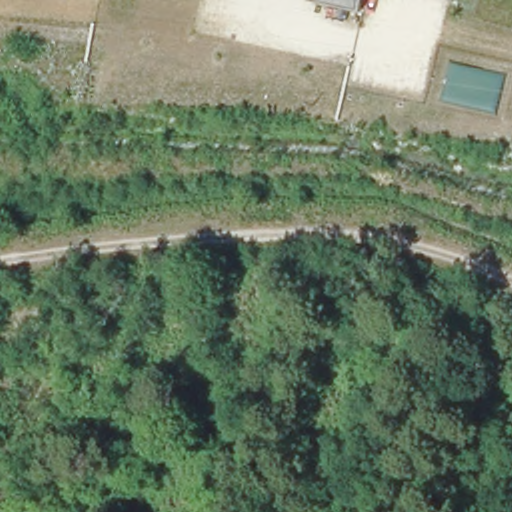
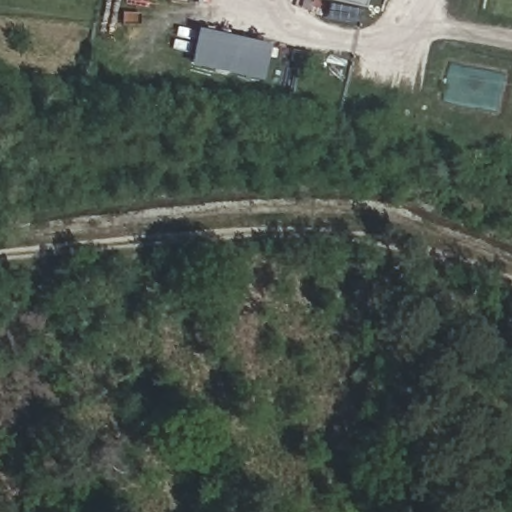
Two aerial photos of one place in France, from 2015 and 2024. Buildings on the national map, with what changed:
unchanged [(326,0),(363,0),(361,10),(326,0)]
new [(268,46),(260,82),(189,67),(196,30),(268,46)]

